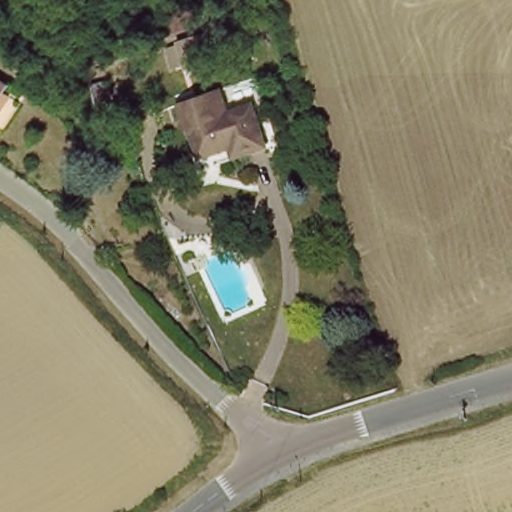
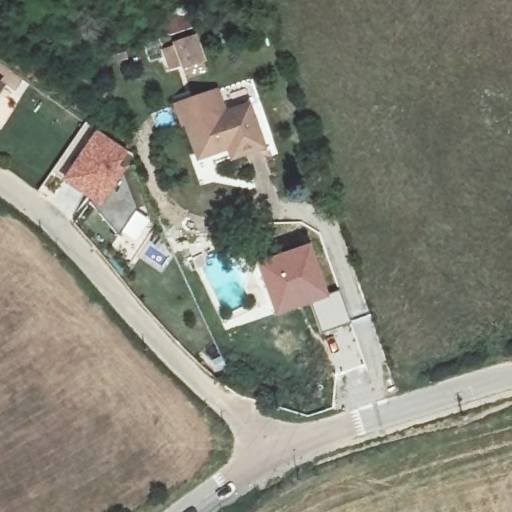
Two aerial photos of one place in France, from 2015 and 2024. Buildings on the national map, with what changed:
unchanged [(180,46),(203,40),(212,63),(187,70),(180,46)]
unchanged [(190,126),(182,121),(175,103),(217,91),(225,116),(252,107),(265,145),(235,158),(230,144),(200,157),(190,126)]
unchanged [(0,100),(0,94),(3,97),(0,100)]
new [(89,110),(117,130),(106,145),(113,150),(126,188),(107,215),(79,181),(80,177),(55,159),(89,110)]
new [(350,322),(320,332),(310,305),(275,318),(253,262),(310,243),(328,295),(339,291),(350,322)]

